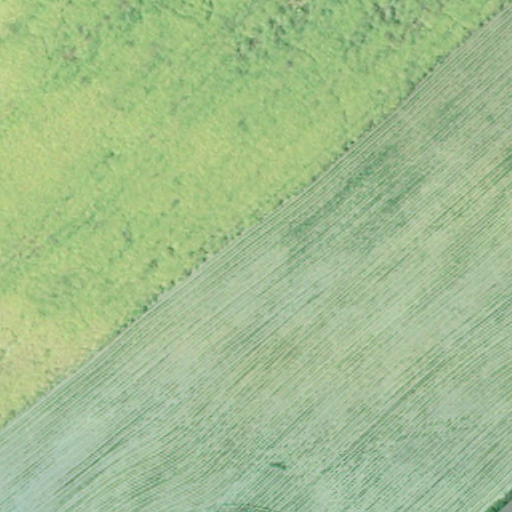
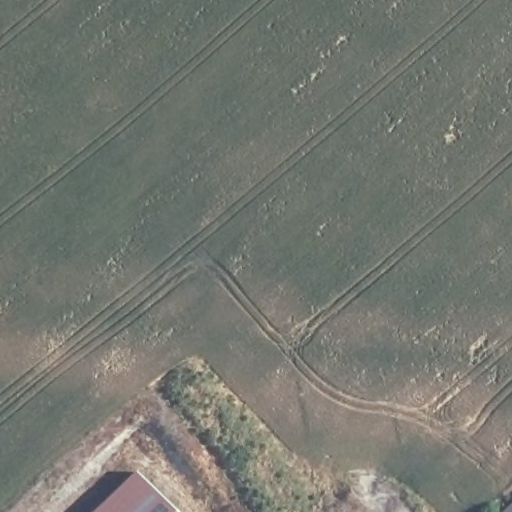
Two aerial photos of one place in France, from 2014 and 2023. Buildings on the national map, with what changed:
new [(178,512),(94,512),(138,470),(178,512)]
unchanged [(512,512),(504,512),(512,505),(512,512)]

